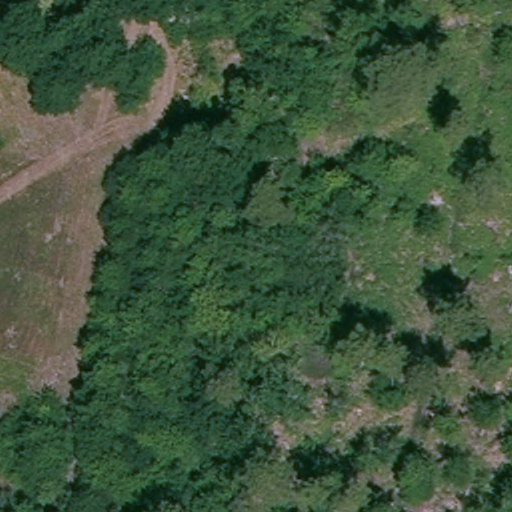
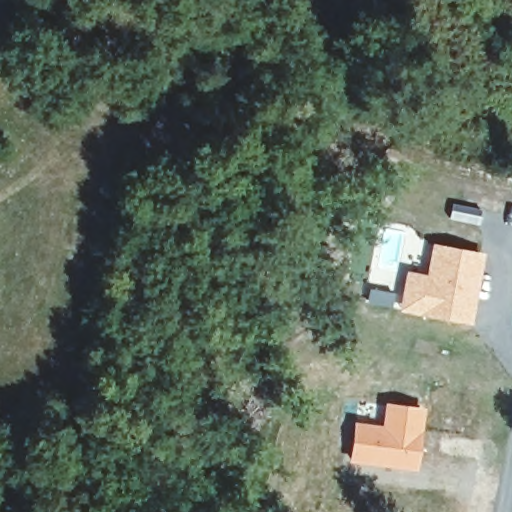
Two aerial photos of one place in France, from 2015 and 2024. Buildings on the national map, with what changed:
unchanged [(26,1),(27,0),(59,0),(56,9),(26,1)]
unchanged [(31,41),(27,49),(15,42),(30,9),(42,16),(40,20),(50,27),(42,45),(31,41)]
unchanged [(215,57),(215,114),(182,113),(185,56),(215,57)]
unchanged [(197,188),(156,185),(157,136),(198,140),(197,188)]
new [(398,311),(405,271),(427,274),(431,243),(484,252),(471,325),(398,311)]
new [(347,462),(352,422),(381,426),(384,403),(423,407),(416,471),(347,462)]

